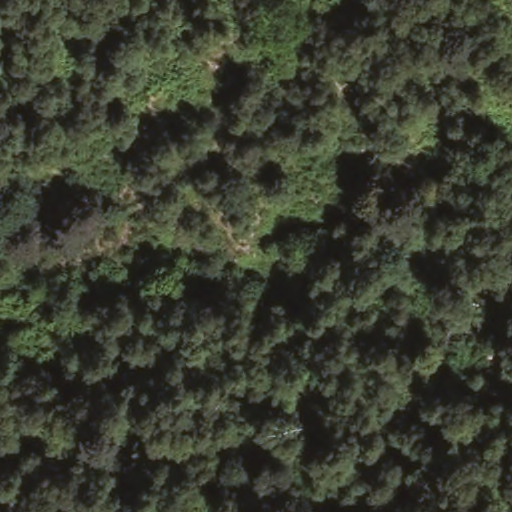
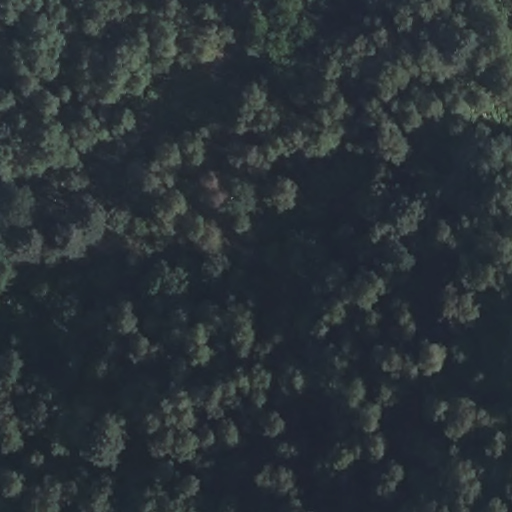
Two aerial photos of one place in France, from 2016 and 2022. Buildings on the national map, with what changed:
[]

